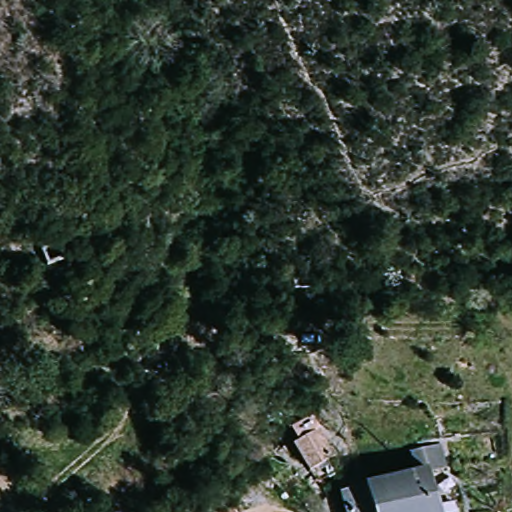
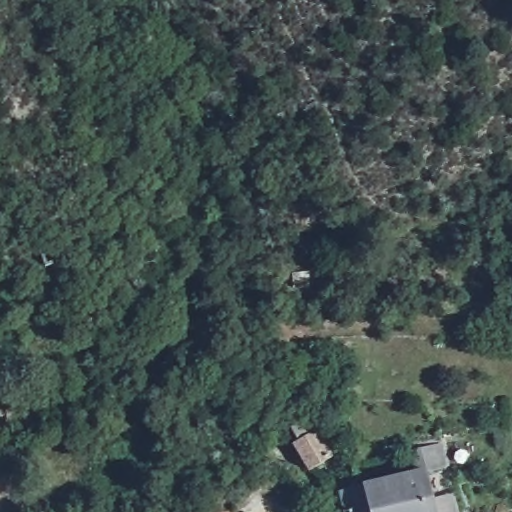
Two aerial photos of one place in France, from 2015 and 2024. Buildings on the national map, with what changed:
unchanged [(287,277),(287,270),(307,270),(305,287),(286,286),(287,277)]
unchanged [(310,469),(295,440),(319,429),(324,430),(337,456),(310,469)]
unchanged [(449,469),(458,512),(373,512),(363,482),(417,469),(412,449),(440,443),(446,469),(449,469)]
unchanged [(363,482),(373,512),(345,512),(345,511),(341,487),(363,482)]
unchanged [(236,512),(221,512),(232,505),(236,512)]

